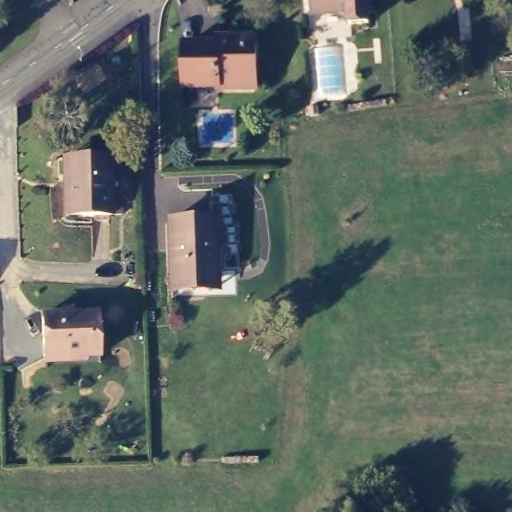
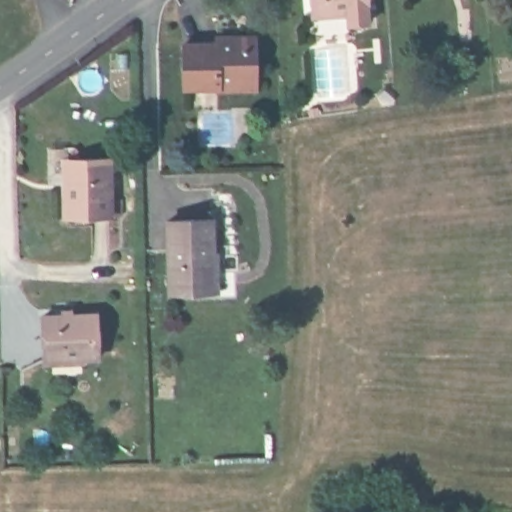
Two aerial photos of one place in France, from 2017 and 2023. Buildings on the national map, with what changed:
unchanged [(314,0),(370,0),(372,17),(316,22),(314,0)]
unchanged [(222,90),(190,90),(190,46),(223,45),(222,38),(260,37),(260,79),(260,88),(222,90)]
unchanged [(68,158),(116,159),(117,216),(68,216),(68,158)]
unchanged [(172,289),(172,280),(170,219),(212,218),(215,279),(213,288),(172,289)]
unchanged [(44,360),(42,317),(97,317),(98,360),(44,360)]

